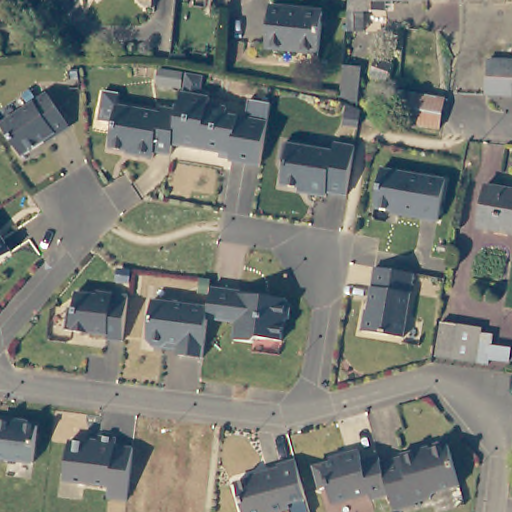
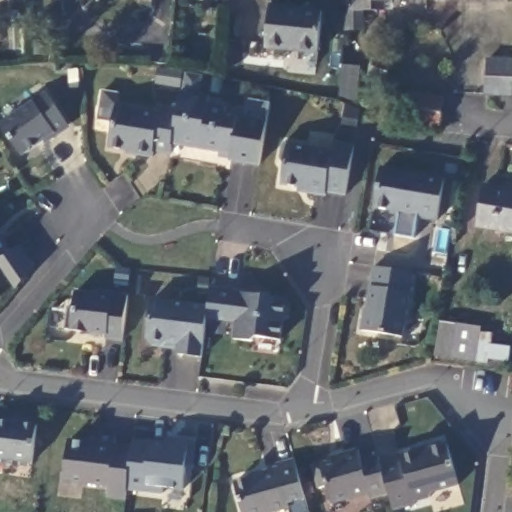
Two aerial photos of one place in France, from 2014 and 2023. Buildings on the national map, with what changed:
unchanged [(387,1),(387,11),(365,11),(365,32),(346,31),(350,0),(402,0),(387,1)]
unchanged [(262,46),(267,3),(320,10),(314,52),(262,46)]
unchanged [(482,94),(483,58),(512,59),(512,94),(482,94)]
unchanged [(370,76),(375,60),(392,65),(386,81),(370,76)]
unchanged [(359,67),(356,102),(339,96),(342,65),(359,67)]
unchanged [(154,156),(135,153),(136,150),(110,146),(114,121),(100,120),(104,91),(120,93),(118,104),(161,111),(161,105),(179,108),(174,142),(172,152),(154,150),(154,156)]
unchanged [(0,120),(42,92),(65,123),(18,155),(0,128),(0,120)]
unchanged [(211,96),(209,103),(227,106),(226,114),(246,117),(250,97),(272,101),(261,164),(231,159),(232,152),(174,142),(179,108),(182,93),(182,92),(211,96)]
unchanged [(405,108),(408,94),(442,100),(437,128),(406,122),(402,122),(405,108)]
unchanged [(351,145),(342,194),(322,191),(322,194),(302,192),(303,187),(277,183),(281,163),(277,159),(280,142),(327,149),(329,141),(351,145)]
unchanged [(394,210),(370,206),(377,167),(441,177),(434,219),(393,212),(394,210)]
unchanged [(474,226),(482,186),(512,191),(512,232),(474,226)]
unchanged [(0,255),(0,240),(7,251),(0,255)]
unchanged [(408,272),(398,336),(357,329),(360,314),(362,315),(370,266),(408,272)]
unchanged [(262,292),(262,295),(287,297),(291,302),(290,315),(285,319),(282,338),(258,336),(252,340),(234,338),(236,320),(208,317),(210,306),(212,286),(262,292)]
unchanged [(129,293),(126,321),(123,340),(107,337),(107,333),(66,328),(69,306),(75,306),(76,290),(97,292),(97,290),(129,293)]
unchanged [(177,353),(179,342),(169,341),(164,345),(152,344),(147,338),(152,298),(210,306),(208,317),(206,333),(204,356),(177,353)]
unchanged [(505,361),(485,358),(483,363),(432,356),(437,322),(457,325),(477,327),(476,333),(487,335),(486,347),(506,350),(505,361)]
unchanged [(29,461),(0,457),(0,420),(32,423),(29,461)]
unchanged [(111,436),(111,443),(129,446),(122,498),(102,496),(104,483),(60,478),(64,439),(92,442),(93,434),(111,436)]
new [(132,447),(134,439),(165,442),(165,437),(198,442),(194,464),(187,467),(184,491),(164,487),(163,495),(123,491),(129,446),(132,447)]
unchanged [(381,461),(401,456),(401,453),(418,448),(420,451),(447,443),(459,485),(433,492),(431,497),(415,502),(416,503),(394,510),(390,493),(381,461)]
unchanged [(372,498),(370,492),(332,503),(327,486),(320,488),(314,466),(341,458),(340,453),(358,448),(362,460),(379,455),(381,461),(390,493),(372,498)]
unchanged [(284,502),(285,507),(267,512),(238,512),(230,482),(256,475),(256,472),(273,467),(272,463),(290,458),(301,497),(284,502)]

